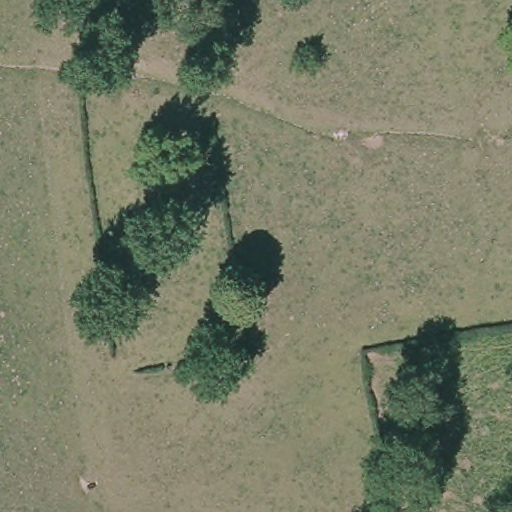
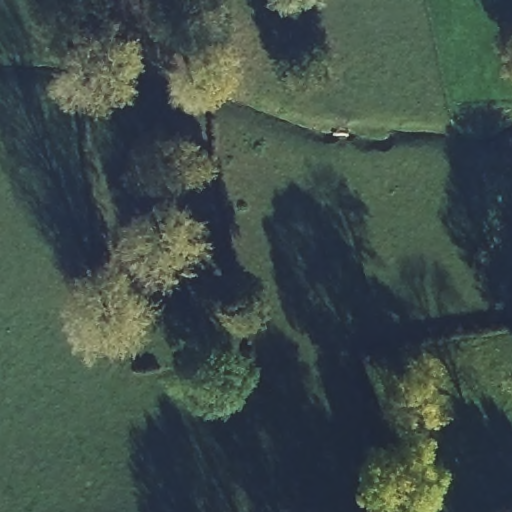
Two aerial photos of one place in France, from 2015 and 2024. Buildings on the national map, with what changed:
[]

